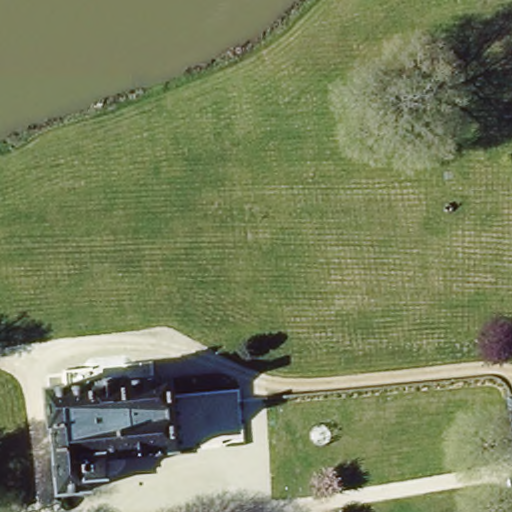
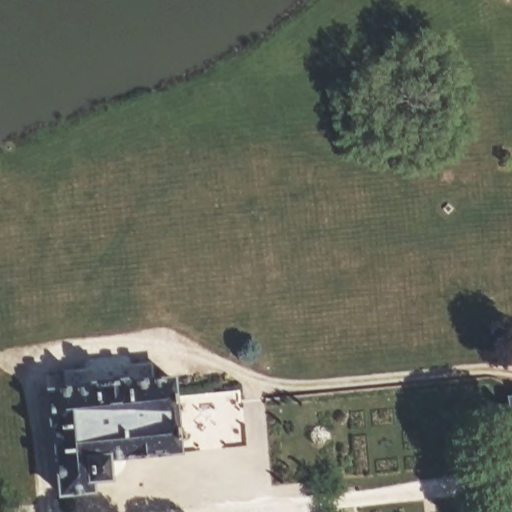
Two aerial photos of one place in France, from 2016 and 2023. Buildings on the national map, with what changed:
unchanged [(242,443),(110,466),(108,482),(89,486),(90,499),(60,504),(42,400),(60,395),(55,381),(145,365),(146,381),(165,379),(168,399),(235,394),(242,443)]
unchanged [(509,389),(512,389),(512,422),(509,389)]

